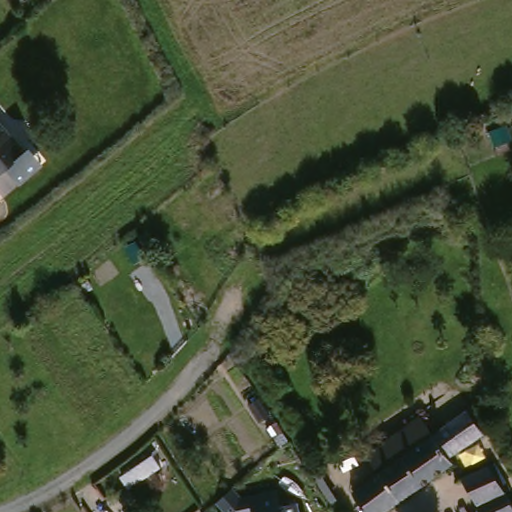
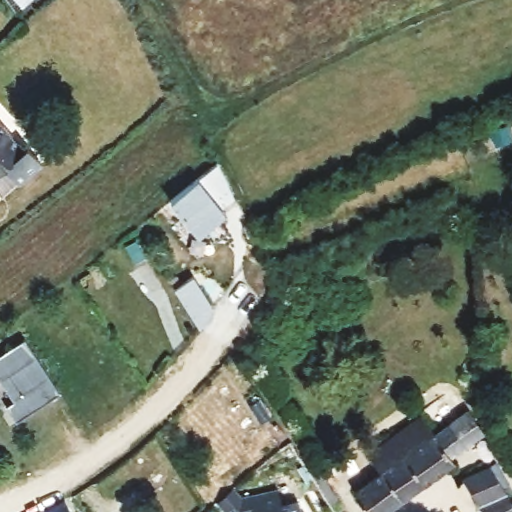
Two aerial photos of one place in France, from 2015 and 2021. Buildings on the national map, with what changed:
unchanged [(41,168),(16,187),(2,171),(0,172),(0,124),(24,153),(27,151),(41,168)]
new [(215,160),(232,194),(218,205),(223,210),(216,215),(226,227),(212,240),(202,227),(196,233),(167,199),(215,160)]
new [(194,278),(214,307),(201,327),(176,291),(194,278)]
demolished [(142,296),(126,310),(113,293),(129,280),(142,296)]
new [(21,339),(57,392),(13,421),(3,406),(11,401),(0,386),(0,353),(21,339)]
unchanged [(357,492),(382,472),(370,455),(425,416),(443,402),(457,420),(470,410),(487,432),(456,455),(460,462),(389,512),(372,512),(357,492)]
unchanged [(460,476),(487,466),(512,507),(512,512),(481,512),(460,476)]
unchanged [(225,506),(240,492),(247,500),(257,497),(285,492),(288,507),(307,503),(309,512),(231,512),(225,506)]

